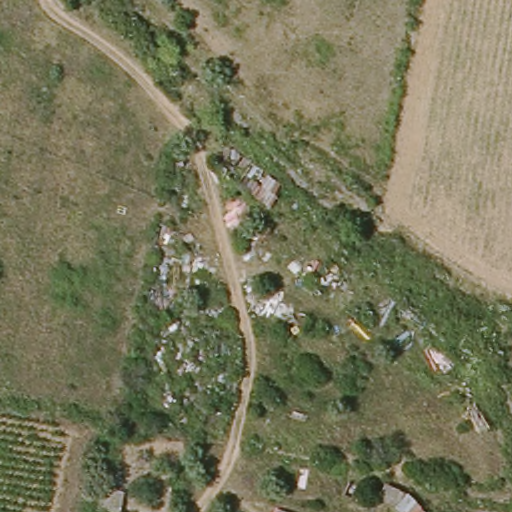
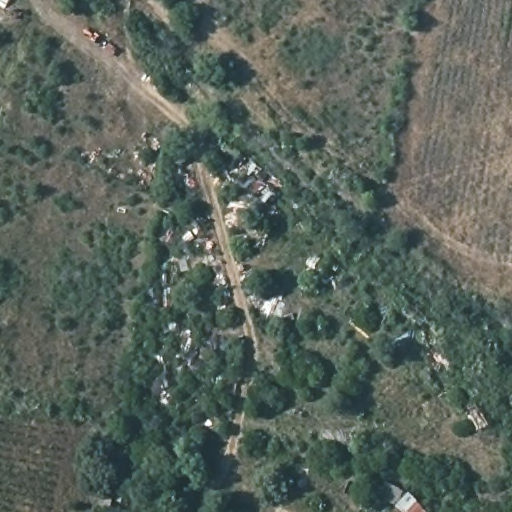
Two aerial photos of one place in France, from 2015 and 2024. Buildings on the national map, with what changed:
unchanged [(290,181),(271,206),(225,178),(230,167),(214,156),(222,141),(290,181)]
unchanged [(402,512),(395,503),(409,493),(422,512),(402,512)]

